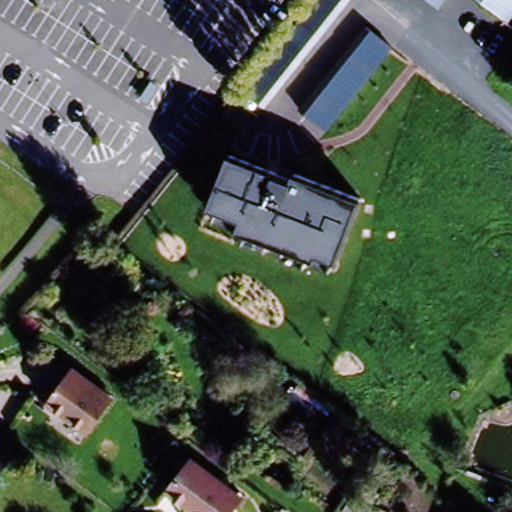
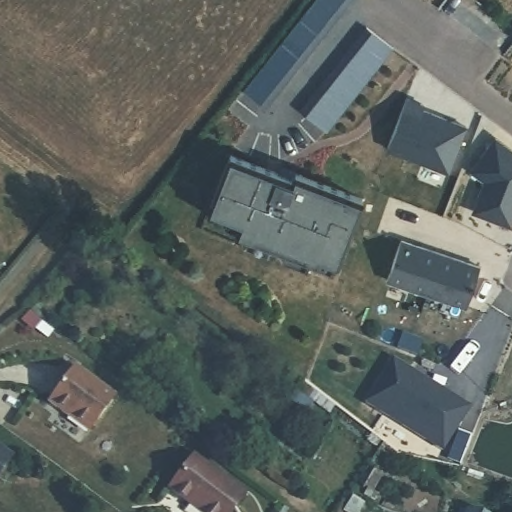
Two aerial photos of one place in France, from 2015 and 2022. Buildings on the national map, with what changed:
unchanged [(353,0),(267,109),(241,89),(312,0),(353,0)]
unchanged [(425,0),(437,0),(433,6),(425,0)]
unchanged [(484,0),(512,0),(512,13),(508,18),(484,0)]
unchanged [(371,30),(397,50),(331,132),(306,111),(371,30)]
new [(424,104),(422,110),(466,126),(449,171),(386,147),(406,96),(424,104)]
new [(512,227),(473,212),(484,180),(471,168),(495,135),(512,148),(512,227)]
unchanged [(336,263),(239,228),(241,218),(213,208),(232,154),(283,172),(295,171),(364,195),(336,263)]
new [(479,264),(468,307),(386,279),(401,236),(479,264)]
new [(471,407),(442,453),(363,404),(392,358),(471,407)]
unchanged [(70,370),(109,399),(83,434),(44,405),(70,370)]
unchanged [(261,435),(270,440),(261,455),(252,449),(261,435)]
unchanged [(10,455),(0,470),(0,448),(10,455)]
unchanged [(234,512),(195,512),(171,493),(195,461),(244,499),(234,512)]
unchanged [(465,506),(481,512),(463,512),(465,506)]

